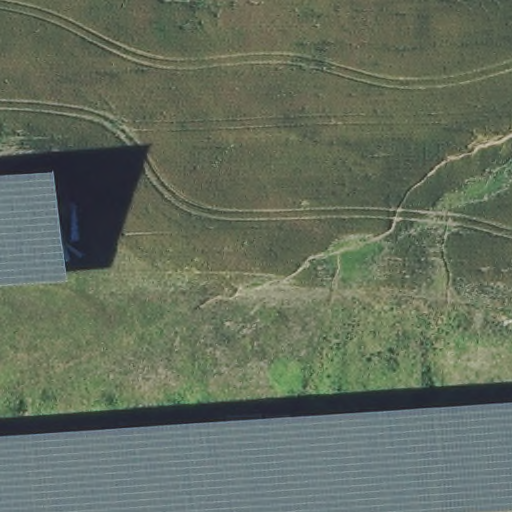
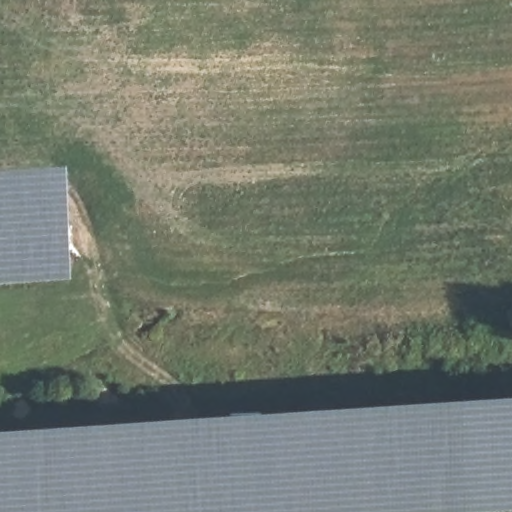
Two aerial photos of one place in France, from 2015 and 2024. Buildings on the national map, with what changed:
unchanged [(0,282),(0,174),(65,169),(69,278),(0,282)]
unchanged [(512,400),(512,510),(477,512),(0,512),(0,435),(512,400)]

